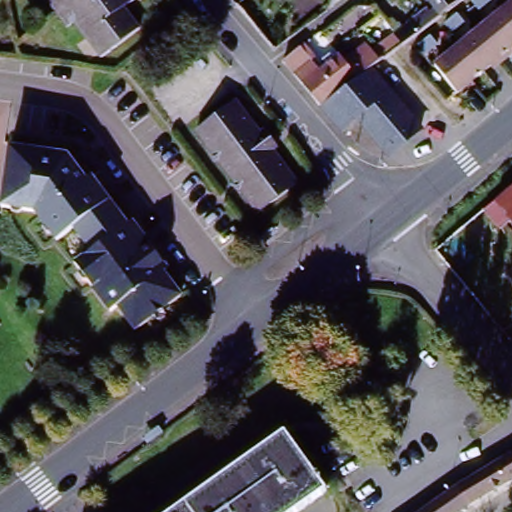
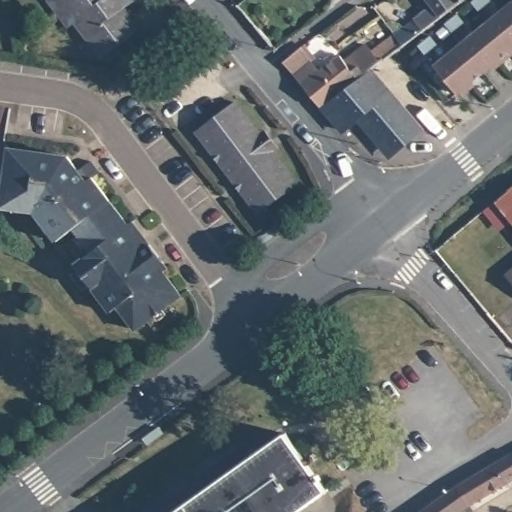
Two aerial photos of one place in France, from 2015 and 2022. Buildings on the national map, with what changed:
unchanged [(41,2),(43,0),(72,0),(53,16),(41,2)]
unchanged [(130,0),(126,3),(142,22),(102,56),(74,23),(65,30),(53,16),(72,0),(130,0)]
unchanged [(375,0),(377,3),(371,8),(366,0),(375,0)]
unchanged [(439,19),(425,0),(454,0),(458,4),(439,19)]
unchanged [(512,5),(512,46),(492,21),(512,5)]
unchanged [(313,66),(318,72),(341,55),(345,60),(367,44),(373,51),(393,36),(422,15),(430,25),(401,47),(398,49),(373,68),(326,103),(324,104),(322,105),(321,104),(295,74),(286,64),(305,46),(316,63),(313,66)]
unchanged [(492,21),(512,46),(512,51),(487,70),(465,44),(492,21)]
unchanged [(461,92),(439,65),(465,44),(487,70),(461,92)]
unchanged [(373,68),(422,132),(404,144),(378,140),(360,117),(346,127),(326,103),(373,68)]
unchanged [(254,214),(192,134),(230,104),(254,135),(258,132),(272,149),(267,154),(291,185),(254,214)]
unchanged [(180,298),(135,332),(117,310),(111,315),(75,269),(91,255),(74,233),(57,245),(35,217),(1,211),(10,151),(68,159),(78,174),(90,165),(99,177),(93,182),(128,227),(131,225),(167,273),(163,276),(180,298)]
unchanged [(512,187),(512,212),(501,197),(512,187)]
unchanged [(512,264),(512,268),(510,265),(512,264)]
unchanged [(313,388),(331,375),(342,390),(324,404),(313,388)]
unchanged [(287,435),(328,493),(300,512),(178,512),(287,435)]
unchanged [(512,455),(512,481),(468,507),(455,488),(512,455)]
unchanged [(468,507),(461,512),(421,512),(455,488),(468,507)]

